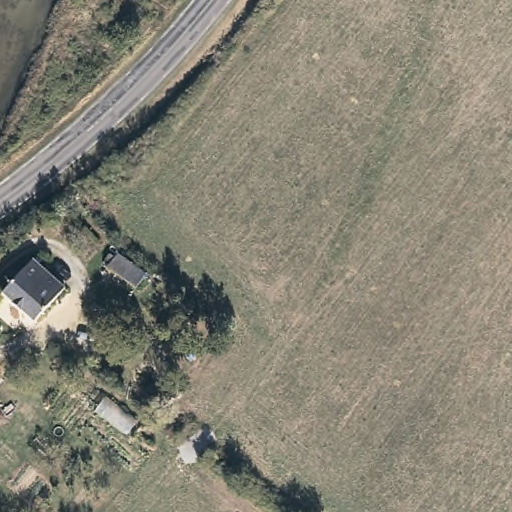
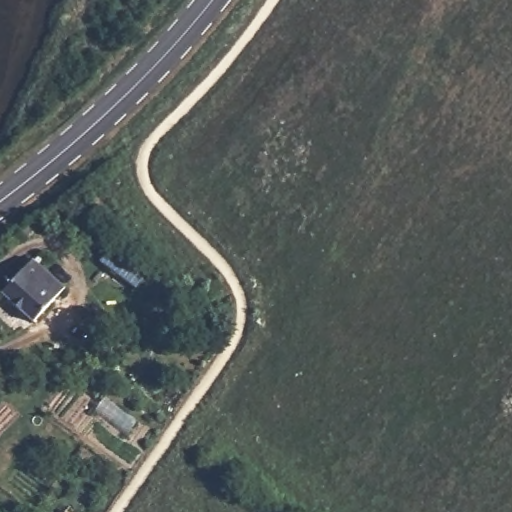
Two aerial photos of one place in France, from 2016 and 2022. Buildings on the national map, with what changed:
unchanged [(137,271),(127,283),(105,266),(115,255),(137,271)]
unchanged [(34,262),(66,291),(59,299),(37,327),(4,297),(22,276),(34,262)]

